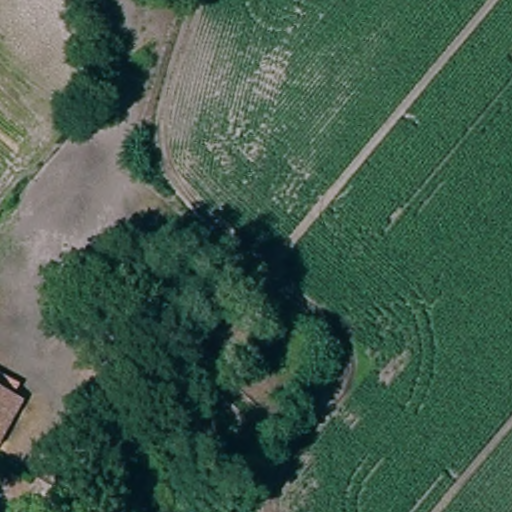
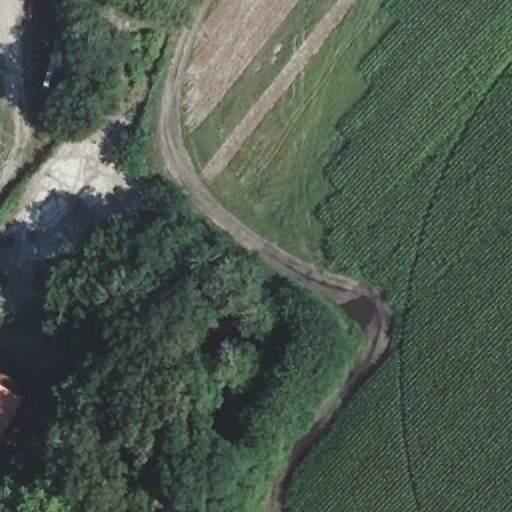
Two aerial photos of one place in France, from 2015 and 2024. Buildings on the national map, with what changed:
unchanged [(0,394),(16,403),(0,432),(0,394)]

